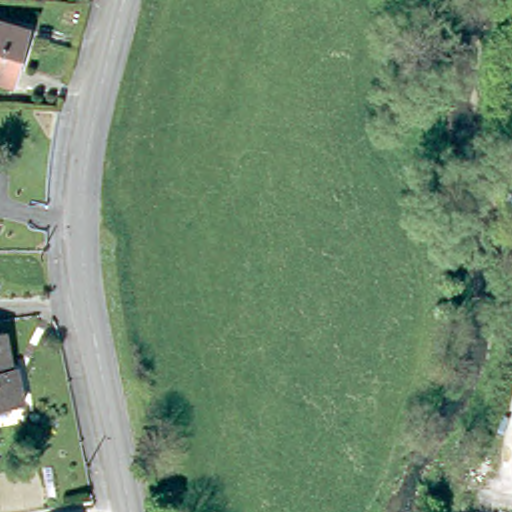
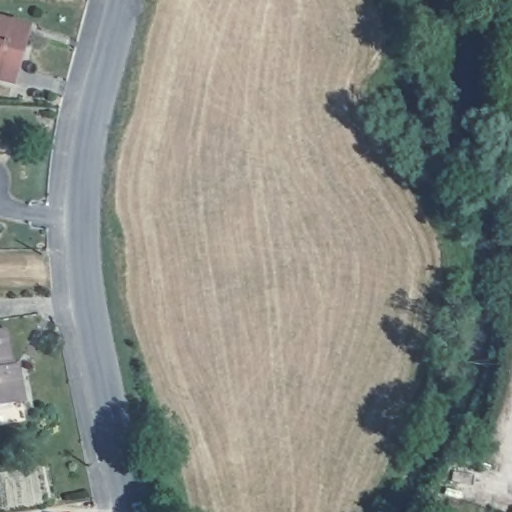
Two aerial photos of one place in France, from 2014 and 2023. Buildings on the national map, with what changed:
unchanged [(0,78),(0,18),(8,20),(29,26),(27,34),(13,82),(0,78)]
unchanged [(0,399),(0,327),(0,326),(6,359),(10,358),(13,370),(18,395),(0,399)]

